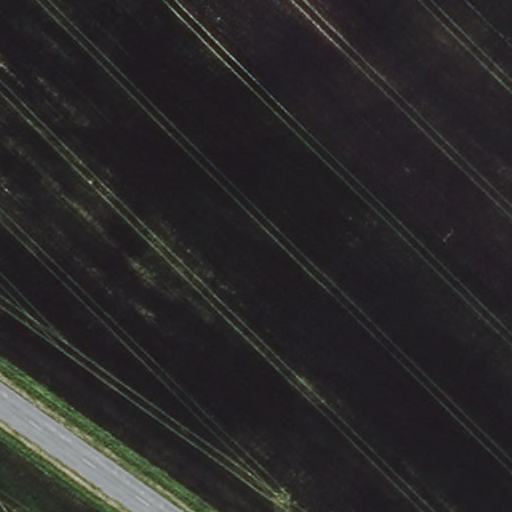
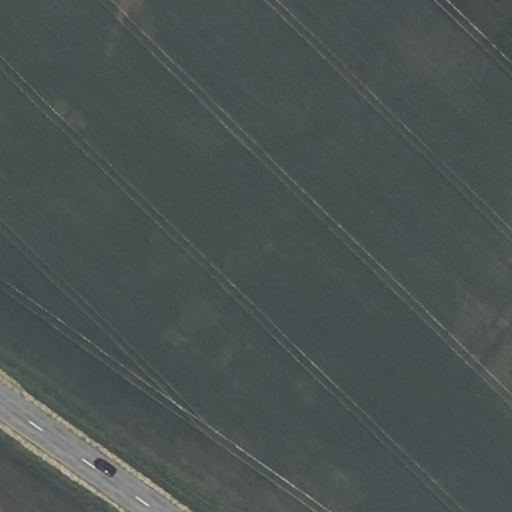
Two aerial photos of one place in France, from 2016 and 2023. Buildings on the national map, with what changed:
[]

